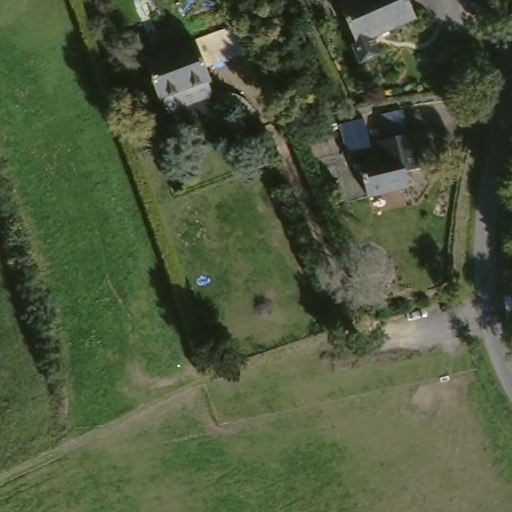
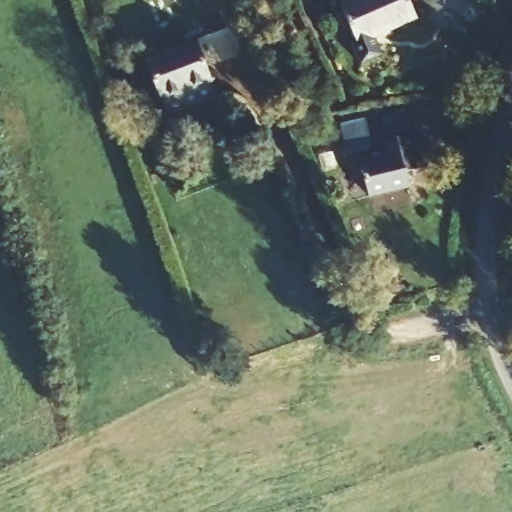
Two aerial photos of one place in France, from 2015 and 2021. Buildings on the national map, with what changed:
unchanged [(367,66),(359,44),(362,42),(347,2),(353,0),(413,0),(421,21),(382,35),(389,58),(367,66)]
unchanged [(242,27),(252,52),(210,69),(200,45),(242,27)]
unchanged [(175,120),(169,106),(168,106),(150,65),(200,45),(210,69),(217,86),(215,87),(221,101),(175,120)]
unchanged [(372,127),(375,142),(418,134),(425,174),(401,177),(403,189),(345,197),(333,134),(372,127)]

